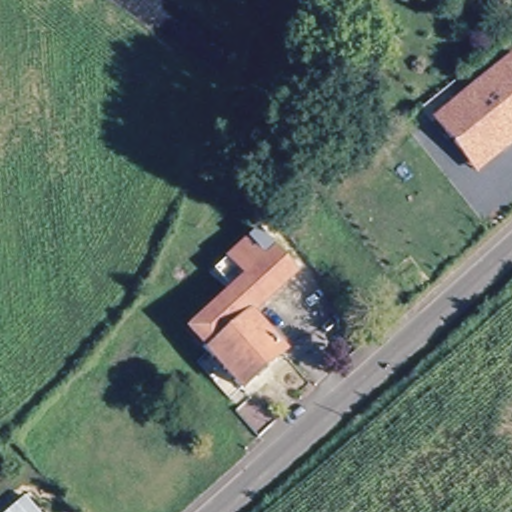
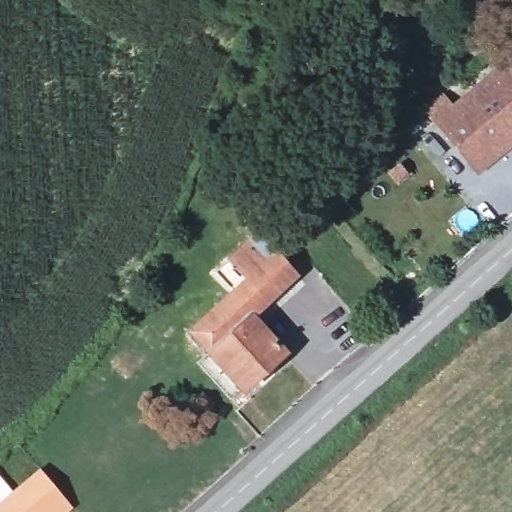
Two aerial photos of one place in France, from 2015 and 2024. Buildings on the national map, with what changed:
unchanged [(467,159),(435,120),(512,55),(512,140),(502,148),(476,170),(467,159)]
unchanged [(256,187),(229,161),(262,125),(290,151),(256,187)]
unchanged [(275,347),(238,385),(187,335),(223,297),(207,282),(250,239),(287,275),(245,318),(275,347)]
new [(0,512),(0,505),(37,471),(65,501),(69,506),(62,512),(0,512)]

